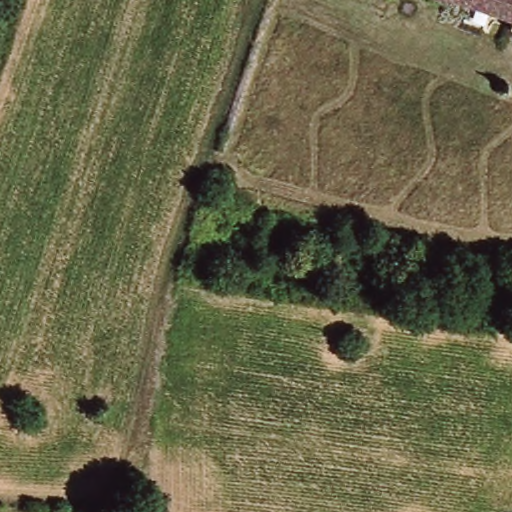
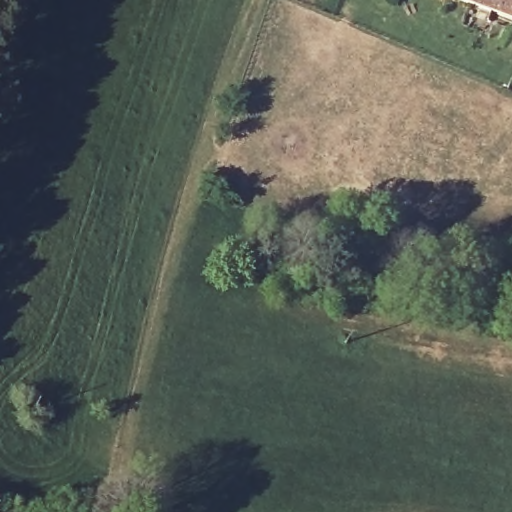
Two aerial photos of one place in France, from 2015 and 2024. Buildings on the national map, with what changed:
unchanged [(452,0),(512,0),(512,19),(452,0)]

